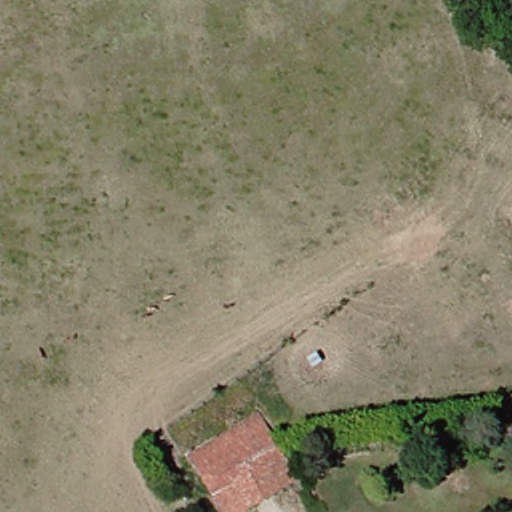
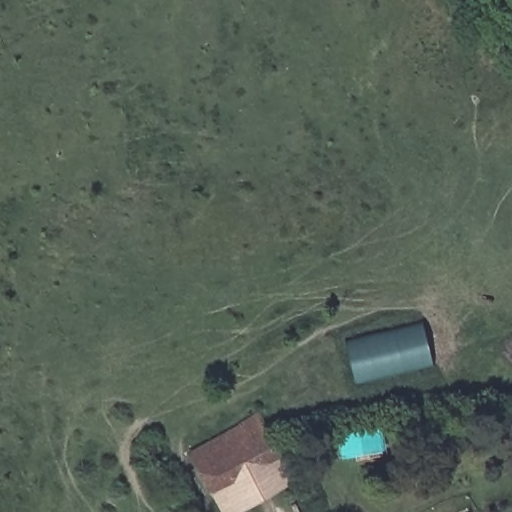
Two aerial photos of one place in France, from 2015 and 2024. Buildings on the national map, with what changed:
new [(347,343),(422,324),(433,366),(356,385),(347,343)]
unchanged [(194,455),(263,413),(287,454),(269,464),(217,495),(194,455)]
unchanged [(286,492),(251,512),(228,512),(217,495),(269,464),(286,492)]

